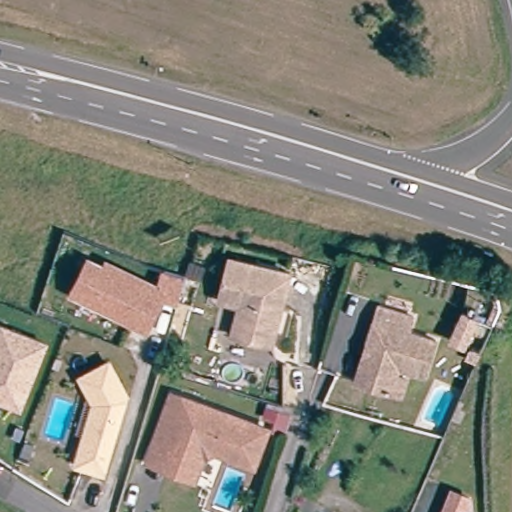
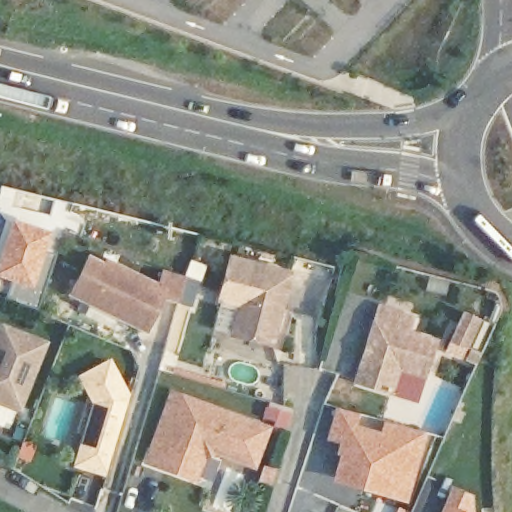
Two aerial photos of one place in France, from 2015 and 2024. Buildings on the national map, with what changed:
new [(51,232),(45,250),(56,255),(38,307),(6,298),(12,281),(0,277),(0,251),(11,219),(51,232)]
unchanged [(286,271),(286,274),(265,341),(227,330),(236,301),(216,295),(227,259),(228,254),(286,271)]
unchanged [(187,257),(200,261),(196,275),(183,271),(187,257)]
unchanged [(159,292),(150,327),(71,304),(82,267),(99,272),(100,267),(156,283),(162,266),(183,272),(175,297),(159,292)]
unchanged [(396,392),(387,389),(377,386),(372,384),(352,379),(354,373),(375,302),(408,312),(403,328),(431,336),(421,372),(404,366),(396,391),(396,392)]
unchanged [(477,367),(469,363),(473,354),(466,350),(478,323),(494,330),(477,367)]
unchanged [(42,343),(16,408),(0,401),(0,326),(42,343)]
unchanged [(84,378),(111,363),(130,399),(124,419),(108,473),(79,464),(98,402),(84,378)]
unchanged [(147,443),(167,389),(262,425),(248,462),(206,446),(198,450),(188,476),(161,465),(141,458),(147,443)]
new [(335,406),(367,415),(365,424),(377,428),(381,418),(428,432),(407,503),(330,482),(337,445),(324,441),(335,406)]
unchanged [(451,498),(457,500),(466,504),(466,512),(445,512),(451,498)]
new [(380,503),(409,512),(377,512),(380,503)]

